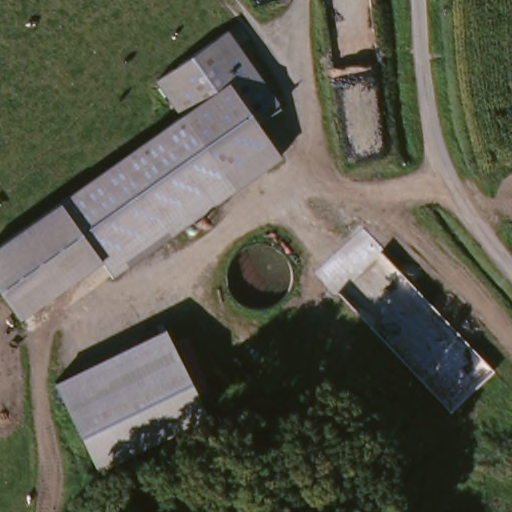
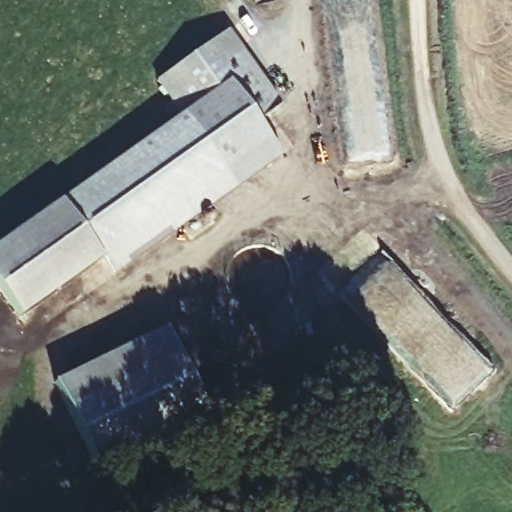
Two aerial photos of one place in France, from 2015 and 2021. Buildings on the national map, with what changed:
unchanged [(159,79),(229,31),(281,107),(258,122),(282,157),(110,274),(99,257),(16,313),(0,289),(0,240),(183,115),(159,79)]
unchanged [(208,415),(92,471),(50,380),(164,325),(208,415)]

